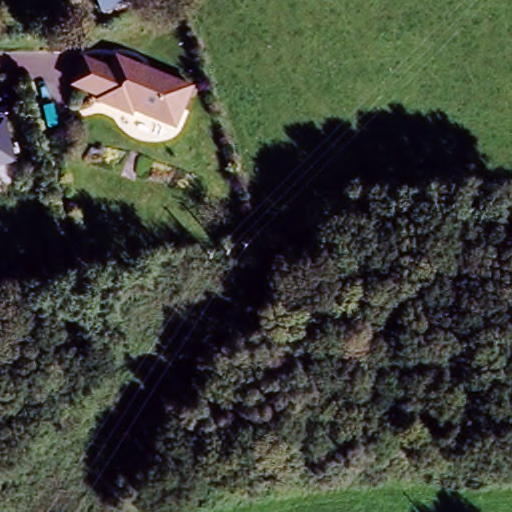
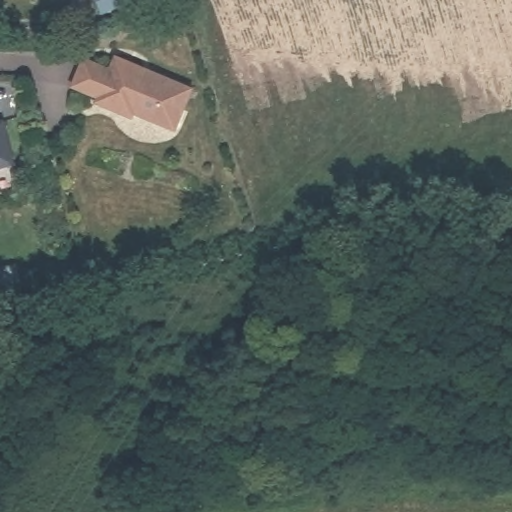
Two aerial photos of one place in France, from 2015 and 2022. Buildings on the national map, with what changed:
unchanged [(100,1),(101,0),(137,0),(111,17),(100,1)]
unchanged [(197,90),(180,136),(71,95),(85,60),(197,90)]
unchanged [(0,170),(0,121),(5,120),(14,167),(0,170)]

